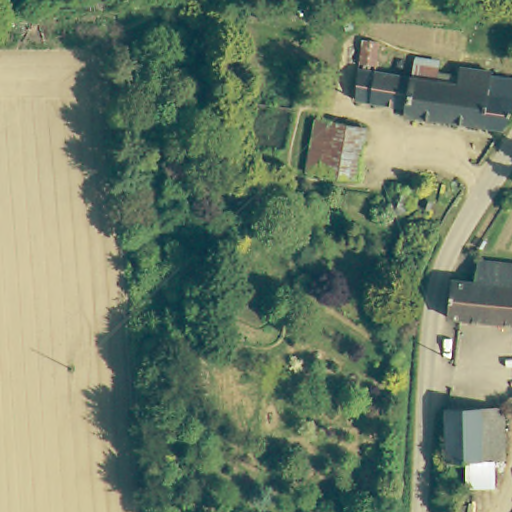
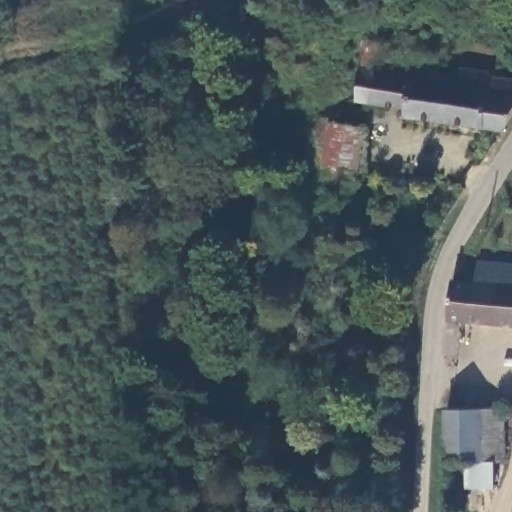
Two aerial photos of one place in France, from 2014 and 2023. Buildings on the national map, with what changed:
unchanged [(381,37),(375,68),(378,69),(406,73),(455,80),(457,62),(486,67),(485,76),(512,81),(512,101),(499,131),(397,111),(399,104),(352,96),(358,66),(365,34),(381,37)]
unchanged [(368,130),(357,181),(310,171),(321,120),(368,130)]
unchanged [(409,179),(396,199),(390,204),(385,201),(383,192),(396,171),(409,179)]
unchanged [(460,280),(474,281),(475,263),(512,266),(512,327),(452,322),(449,322),(452,285),(459,285),(460,280)]
unchanged [(458,476),(460,450),(458,460),(455,462),(451,465),(445,462),(441,458),(440,452),(435,451),(438,395),(501,397),(498,449),(486,450),(485,477),(458,476)]

